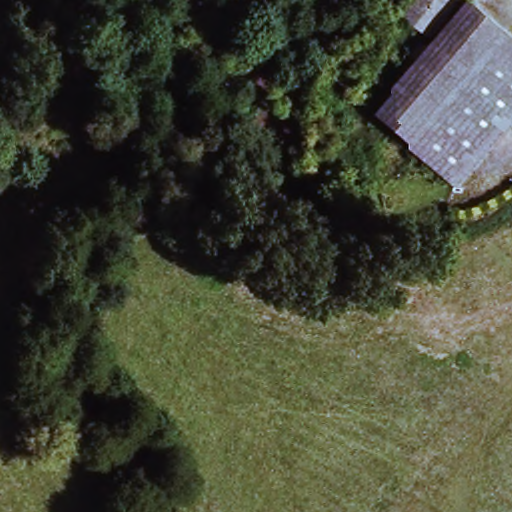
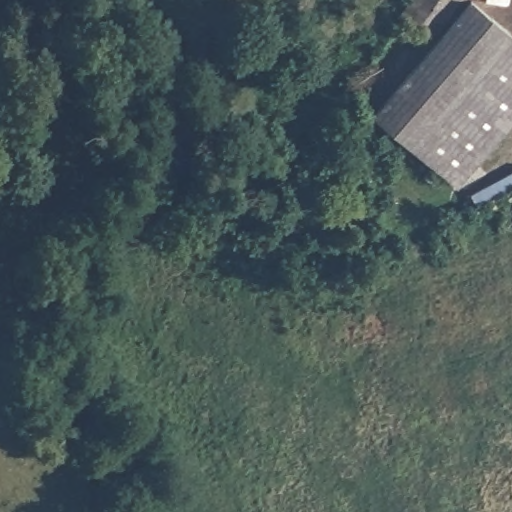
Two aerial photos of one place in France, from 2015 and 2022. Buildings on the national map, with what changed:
unchanged [(402,17),(401,16),(414,0),(457,0),(458,1),(440,24),(429,38),(406,20),(402,17)]
unchanged [(376,118),(449,31),(473,6),(512,40),(512,122),(458,185),(376,118)]

